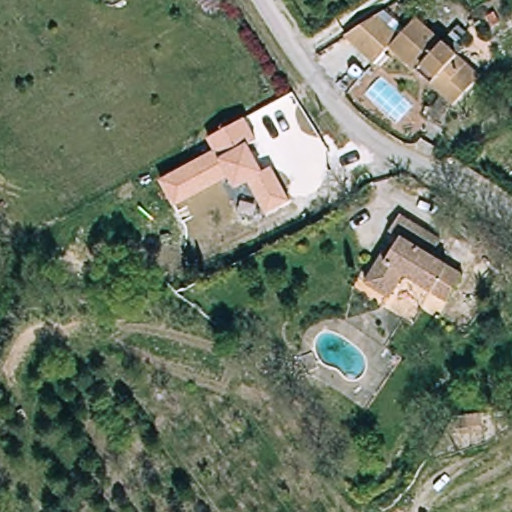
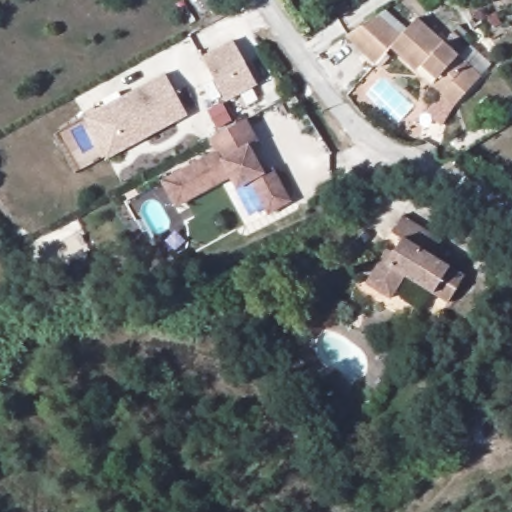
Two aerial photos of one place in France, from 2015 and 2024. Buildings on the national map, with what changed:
unchanged [(390,51),(379,65),(347,36),(378,16),(400,37),(414,21),(482,78),(457,108),(442,95),(418,75),(390,51)]
new [(232,40),(257,85),(225,103),(202,57),(232,40)]
new [(164,73),(188,116),(107,160),(84,118),(164,73)]
unchanged [(249,145),(263,171),(274,166),(291,201),(267,214),(250,181),(235,188),(229,177),(176,206),(163,179),(213,150),(208,140),(245,117),(256,140),(249,145)]
unchanged [(390,297),(368,284),(381,261),(386,265),(403,237),(390,230),(399,214),(440,239),(430,255),(462,274),(447,300),(404,274),(390,297)]

